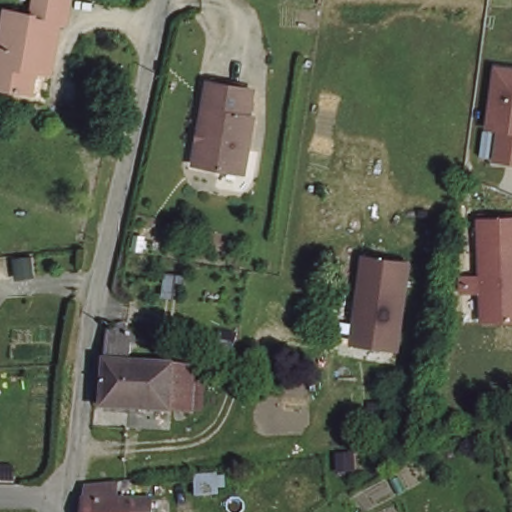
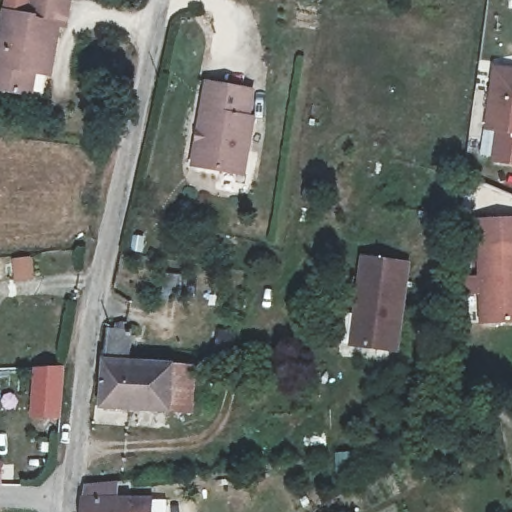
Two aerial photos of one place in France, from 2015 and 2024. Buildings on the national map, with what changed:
unchanged [(38,0),(57,0),(70,2),(65,31),(58,30),(50,71),(38,69),(37,76),(32,75),(28,98),(0,92),(0,74),(1,69),(0,69),(0,35),(4,18),(34,24),(38,0)]
unchanged [(500,133),(489,131),(497,65),(512,67),(512,163),(497,161),(500,133)]
unchanged [(211,113),(205,112),(210,87),(254,94),(250,121),(255,121),(244,177),(200,170),(211,113)]
unchanged [(512,321),(485,321),(480,241),(512,240),(512,321)]
unchanged [(405,350),(350,345),(363,255),(417,261),(405,350)]
unchanged [(32,266),(33,280),(14,281),(12,268),(32,266)]
unchanged [(133,413),(110,413),(109,350),(132,350),(132,355),(132,370),(133,413)]
new [(65,365),(60,416),(32,417),(36,366),(65,365)]
unchanged [(199,368),(200,411),(177,412),(176,369),(199,368)]
unchanged [(132,370),(176,369),(177,412),(133,413),(132,370)]
unchanged [(115,483),(116,498),(150,497),(151,512),(84,512),(85,488),(115,483)]

